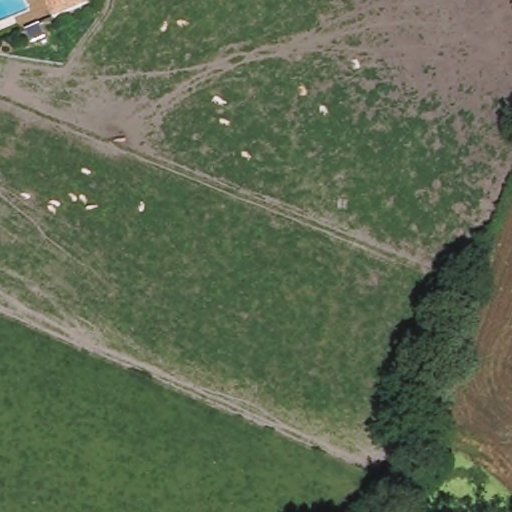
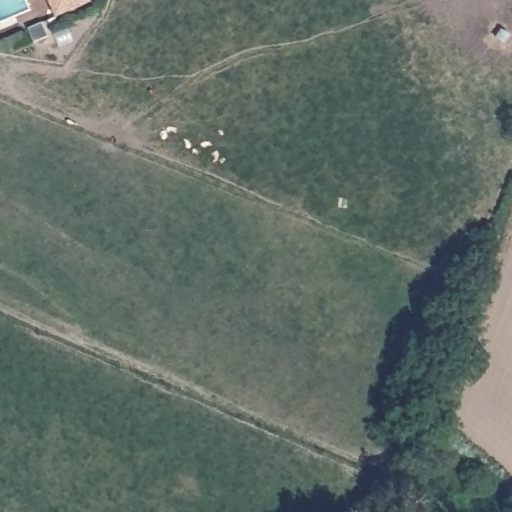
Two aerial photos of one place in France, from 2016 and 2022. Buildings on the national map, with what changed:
unchanged [(87,6),(51,18),(46,0),(86,0),(87,6)]

